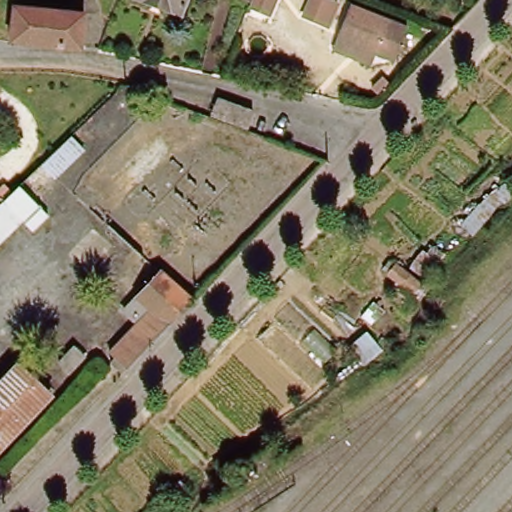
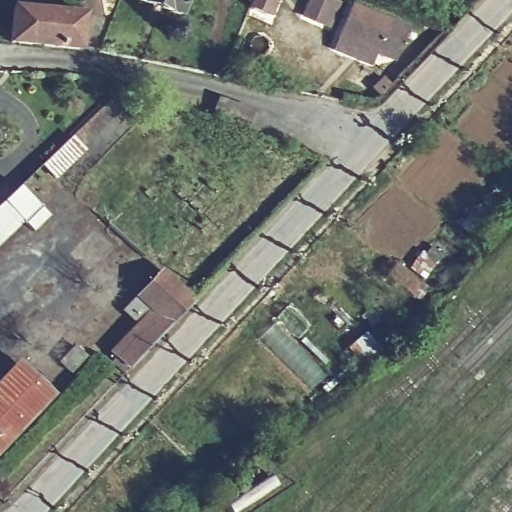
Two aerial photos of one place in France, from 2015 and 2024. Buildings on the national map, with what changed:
unchanged [(182,16),(137,0),(187,0),(182,16)]
unchanged [(252,8),(255,0),(277,0),(271,16),(252,8)]
unchanged [(341,4),(331,28),(307,18),(315,0),(332,0),(341,4)]
unchanged [(353,6),(408,26),(398,55),(383,50),(381,55),(377,65),(337,51),(341,41),(353,6)]
unchanged [(82,51),(13,44),(16,10),(84,17),(82,51)]
unchanged [(213,117),(220,100),(254,114),(250,129),(213,117)]
unchanged [(85,154),(53,184),(39,166),(73,133),(85,154)]
unchanged [(472,239),(461,227),(501,183),(512,194),(512,198),(472,239)]
unchanged [(0,243),(0,207),(21,187),(51,219),(36,234),(23,221),(0,243)]
unchanged [(442,265),(416,299),(388,276),(400,257),(409,267),(425,248),(442,265)]
unchanged [(108,355),(149,311),(132,295),(156,270),(192,304),(126,372),(108,355)]
unchanged [(301,293),(309,283),(329,299),(322,309),(301,293)]
unchanged [(90,356),(73,379),(57,369),(73,344),(90,356)]
unchanged [(0,446),(0,386),(19,366),(49,394),(0,446)]

